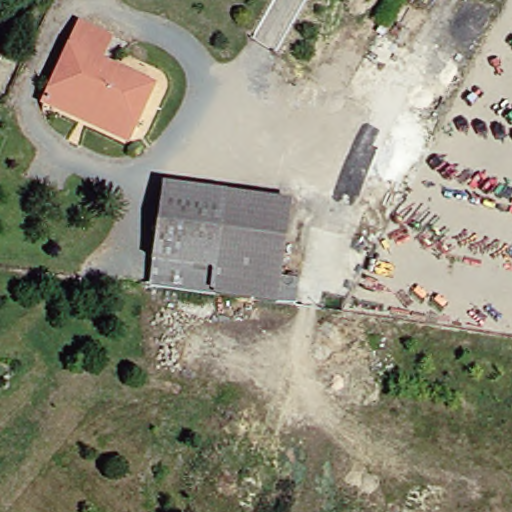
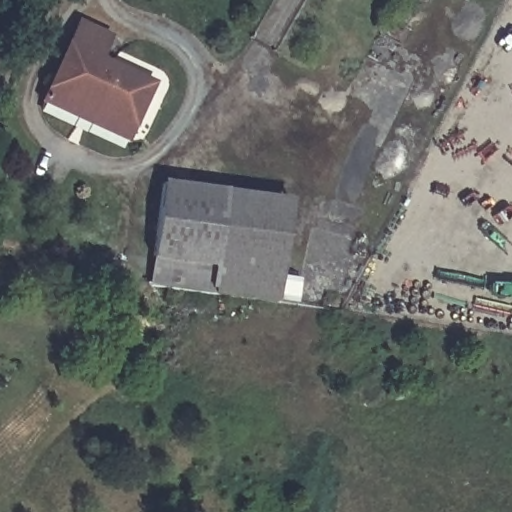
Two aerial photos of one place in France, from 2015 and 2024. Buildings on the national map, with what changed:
unchanged [(92,59),(144,84),(123,126),(41,86),(72,21),(103,36),(92,59)]
unchanged [(123,126),(118,137),(35,97),(41,86),(123,126)]
unchanged [(207,267),(144,258),(154,186),(216,194),(207,267)]
unchanged [(207,267),(216,194),(221,194),(208,295),(141,285),(144,258),(207,267)]
unchanged [(281,202),(268,302),(226,297),(208,295),(221,194),(278,202),(281,202)]

